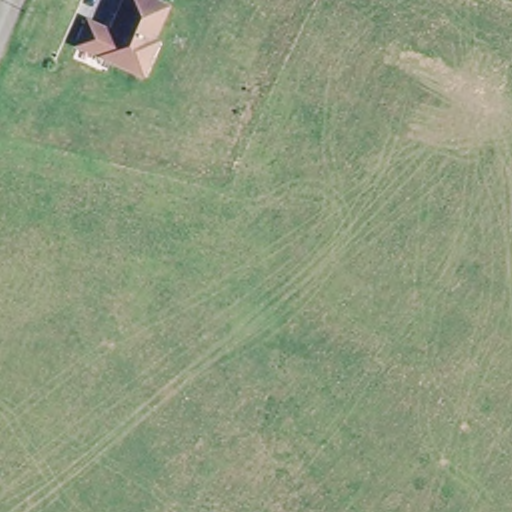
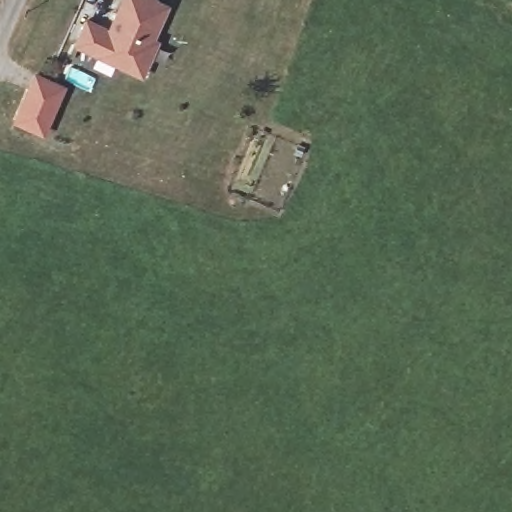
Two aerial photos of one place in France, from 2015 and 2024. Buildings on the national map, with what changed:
unchanged [(133,72),(77,48),(88,22),(111,33),(126,0),(157,0),(156,2),(169,7),(155,40),(159,42),(150,62),(144,77),(133,72)]
new [(12,122),(34,72),(68,86),(45,136),(12,122)]

